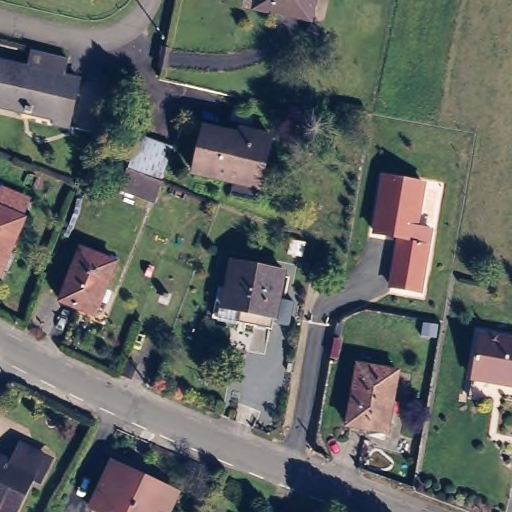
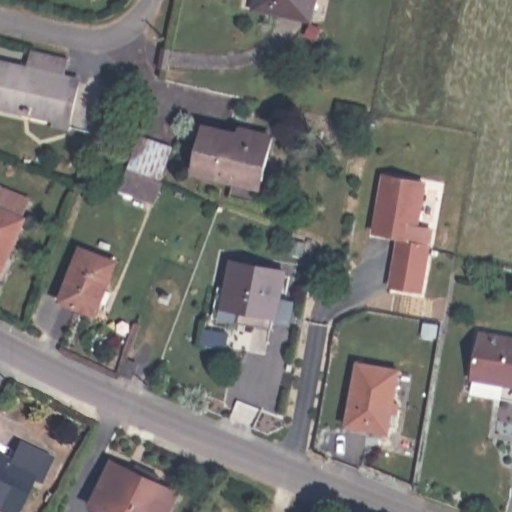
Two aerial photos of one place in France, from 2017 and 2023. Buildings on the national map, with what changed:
unchanged [(299,19),(256,10),(257,0),(313,0),(309,20),(299,19)]
unchanged [(65,122),(28,115),(28,106),(0,101),(0,64),(25,69),(26,64),(73,75),(65,122)]
unchanged [(236,182),(192,170),(201,132),(238,140),(240,134),(272,140),(264,179),(261,189),(236,182)]
unchanged [(143,136),(177,149),(159,202),(123,189),(143,136)]
unchanged [(423,229),(437,231),(426,291),(397,286),(406,236),(381,231),(391,177),(431,185),(423,229)]
unchanged [(0,262),(0,199),(23,207),(0,262)]
unchanged [(94,312),(61,299),(81,247),(114,260),(94,312)]
unchanged [(273,315),(216,302),(222,272),(231,275),(235,250),(284,261),(273,315)]
unchanged [(481,325),(512,330),(512,380),(471,373),(481,325)]
unchanged [(383,433),(347,427),(356,370),(393,376),(383,433)]
unchanged [(14,511),(0,505),(0,456),(14,462),(21,448),(46,460),(39,476),(32,473),(14,511)]
unchanged [(135,460),(158,470),(154,479),(175,488),(165,512),(116,512),(91,502),(110,460),(131,469),(135,460)]

